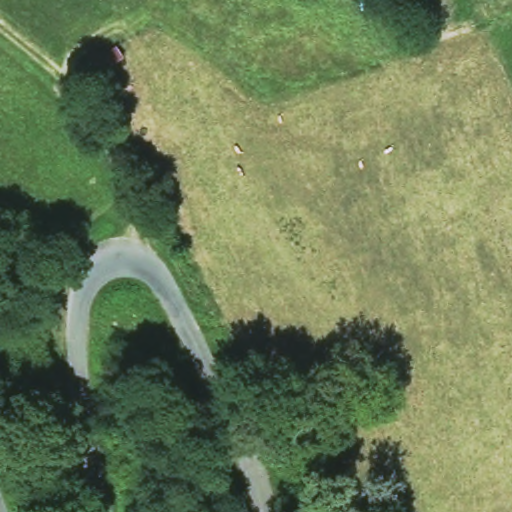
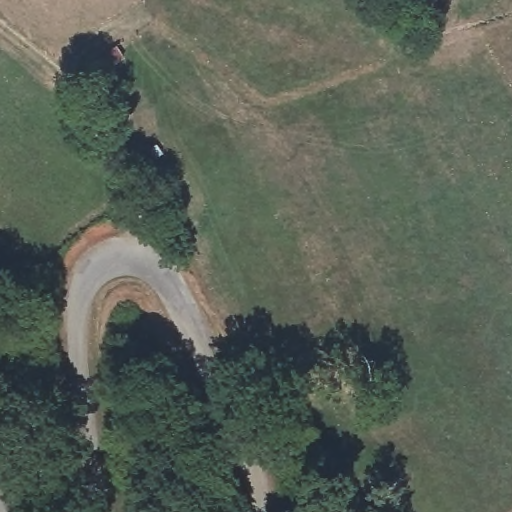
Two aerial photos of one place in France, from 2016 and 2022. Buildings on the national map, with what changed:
unchanged [(116,43),(134,60),(103,85),(92,66),(116,43)]

